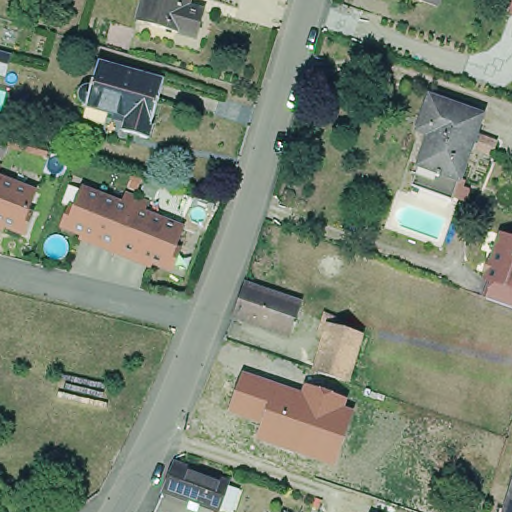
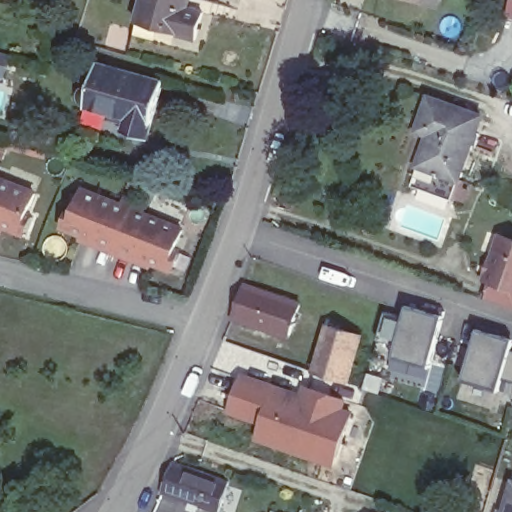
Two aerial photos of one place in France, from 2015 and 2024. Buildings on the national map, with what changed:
unchanged [(203,12),(195,39),(136,20),(142,0),(188,0),(186,6),(203,12)]
unchanged [(509,12),(512,2),(512,13),(509,12)]
unchanged [(6,75),(0,74),(0,53),(11,56),(6,75)]
unchanged [(131,113),(91,102),(100,66),(103,58),(168,78),(165,86),(151,134),(126,128),(131,113)]
unchanged [(421,175),(429,153),(440,123),(429,119),(434,107),(442,85),(492,105),(469,168),(466,175),(477,180),(473,190),(462,186),(460,189),(421,175)]
unchanged [(0,178),(39,194),(31,215),(38,218),(29,235),(6,225),(4,232),(0,230),(0,165),(5,167),(0,178)]
unchanged [(85,230),(64,221),(71,204),(76,206),(85,185),(123,201),(128,189),(139,193),(151,198),(146,210),(186,227),(177,247),(183,249),(174,267),(151,257),(149,262),(116,249),(83,235),(85,230)]
unchanged [(483,296),(489,278),(482,276),(499,233),(512,237),(512,303),(483,296)]
unchanged [(248,284),(304,303),(293,335),(237,317),(248,284)]
new [(384,310),(404,316),(406,309),(421,313),(423,305),(444,311),(429,368),(392,358),(396,345),(376,340),(384,310)]
new [(479,324),(500,330),(498,339),(512,343),(512,347),(511,350),(512,350),(512,382),(502,379),(499,392),(463,381),(479,324)]
unchanged [(360,339),(347,386),(314,376),(329,330),(360,339)]
unchanged [(243,372),(301,393),(304,385),(348,399),(346,408),(354,410),(336,467),(254,440),(261,424),(228,413),(243,372)]
unchanged [(173,461),(228,481),(218,511),(161,491),(173,461)]
unchanged [(492,509),(501,512),(509,482),(512,483),(512,512),(491,512),(492,509)]
unchanged [(271,511),(275,512),(271,512),(271,511)]

